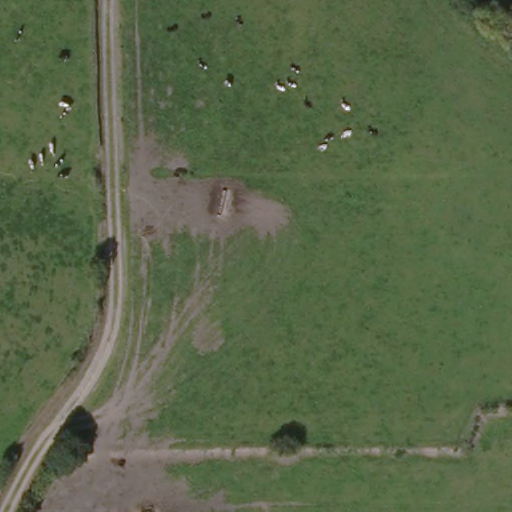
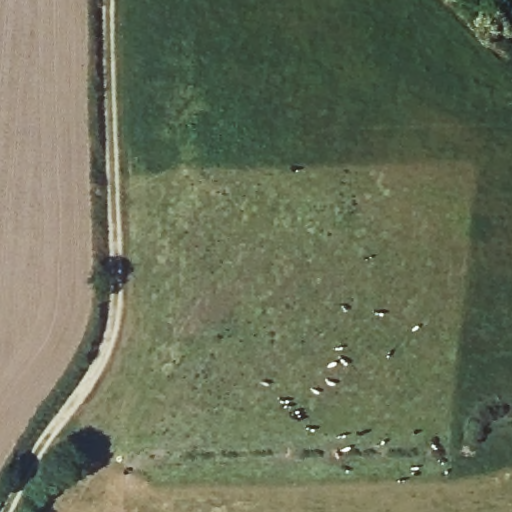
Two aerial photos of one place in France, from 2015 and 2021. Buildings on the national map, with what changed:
[]

